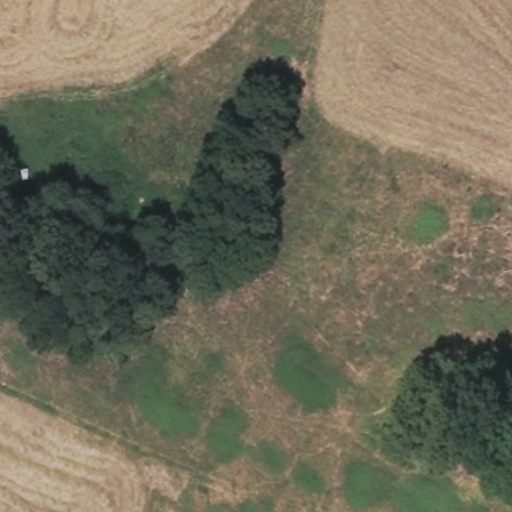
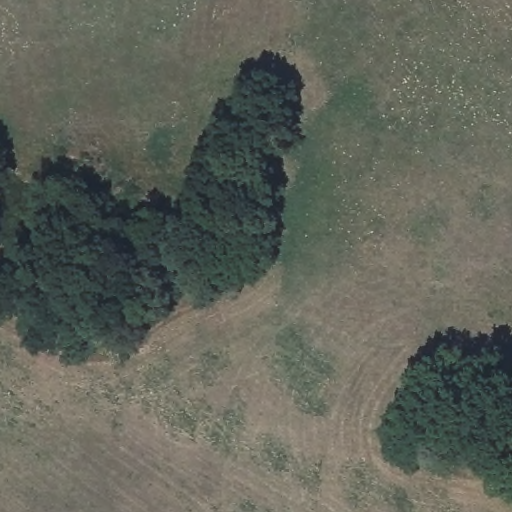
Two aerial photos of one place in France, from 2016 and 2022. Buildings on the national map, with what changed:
unchanged [(181,192),(177,207),(160,204),(165,187),(181,192)]

